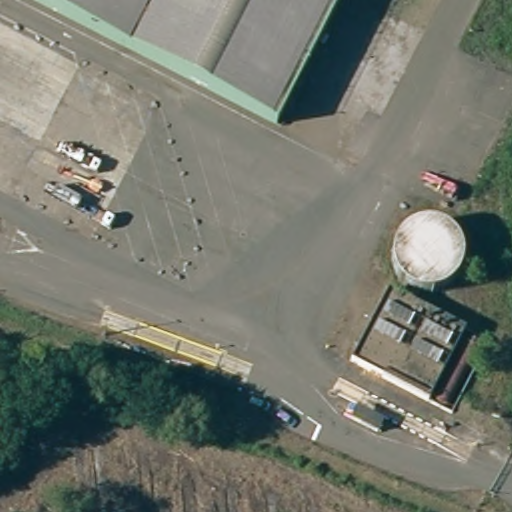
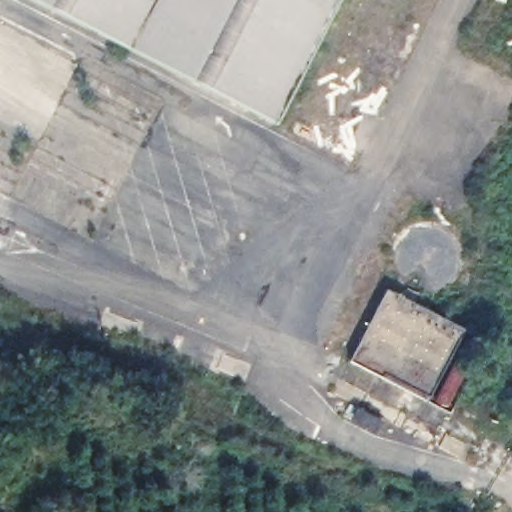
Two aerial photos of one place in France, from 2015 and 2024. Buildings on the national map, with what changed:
unchanged [(346,0),(281,131),(20,0),(346,0)]
unchanged [(424,401),(348,361),(385,288),(400,296),(405,286),(410,288),(417,292),(411,302),(461,329),(424,401)]
unchanged [(367,402),(385,412),(379,423),(361,413),(367,402)]

